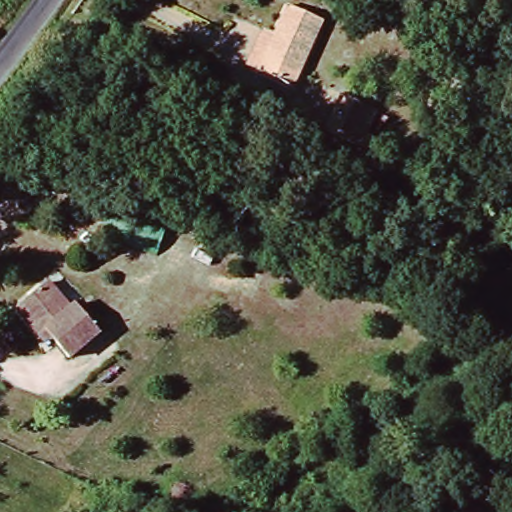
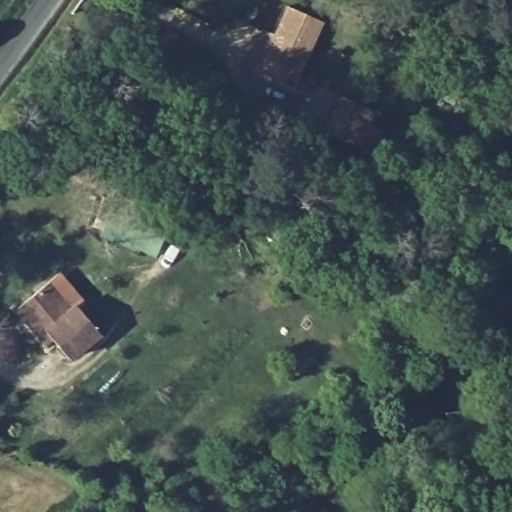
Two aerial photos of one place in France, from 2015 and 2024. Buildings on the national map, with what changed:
unchanged [(243,60),(252,42),(261,25),(274,32),(287,7),(320,23),(299,65),(290,85),(255,67),(243,60)]
unchanged [(337,94),(373,111),(359,147),(320,133),(337,94)]
unchanged [(138,295),(150,280),(160,287),(148,305),(138,295)]
unchanged [(15,310),(46,285),(69,314),(73,311),(94,341),(65,364),(41,334),(36,337),(15,310)]

